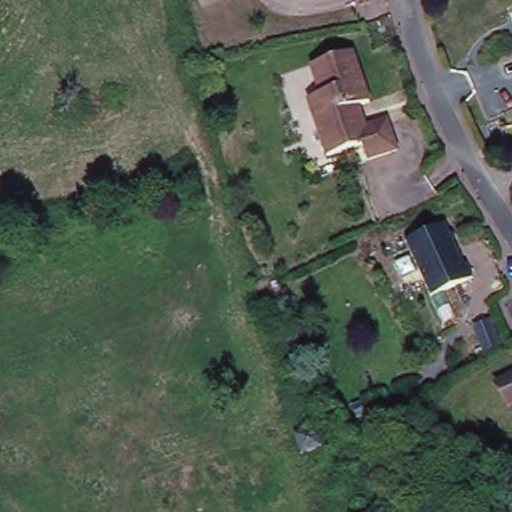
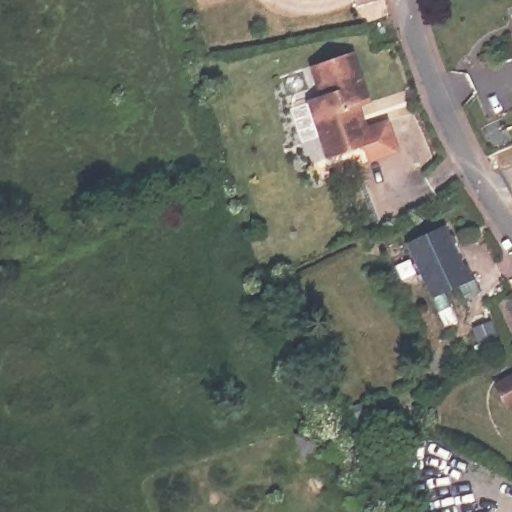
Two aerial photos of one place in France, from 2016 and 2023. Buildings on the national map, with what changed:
unchanged [(348,53),(366,105),(348,111),(355,133),(385,122),(395,153),(364,164),(356,141),(322,153),(304,102),(317,97),(307,68),(348,53)]
unchanged [(448,226),(469,267),(472,265),(479,279),(439,300),(411,246),(448,226)]
unchanged [(500,348),(479,355),(470,330),(490,323),(500,348)]
unchanged [(512,378),(512,403),(507,406),(496,387),(512,378)]
unchanged [(309,425),(318,447),(297,454),(290,433),(309,425)]

